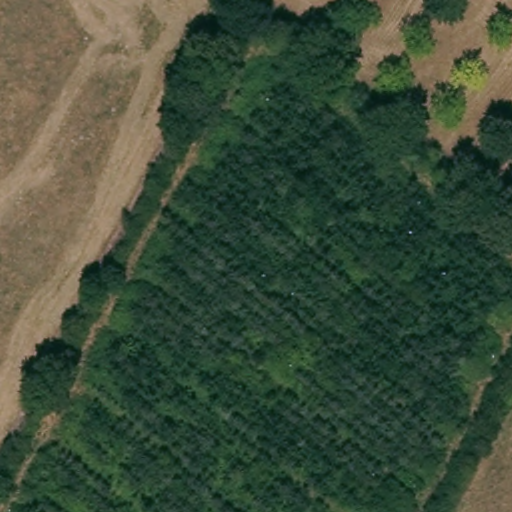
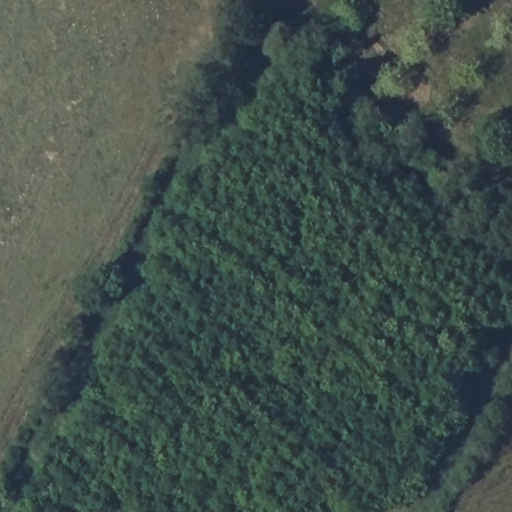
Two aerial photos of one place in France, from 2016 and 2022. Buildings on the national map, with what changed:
[]

